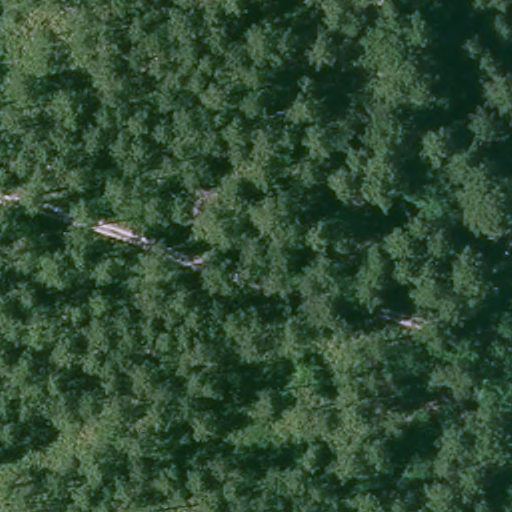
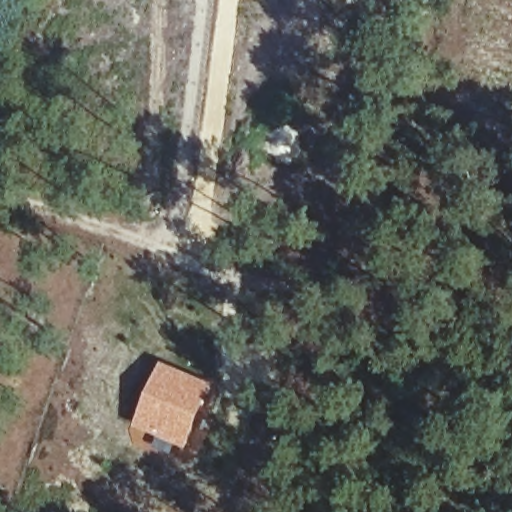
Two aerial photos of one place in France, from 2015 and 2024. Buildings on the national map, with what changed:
new [(161,362),(214,384),(185,450),(134,427),(161,362)]

